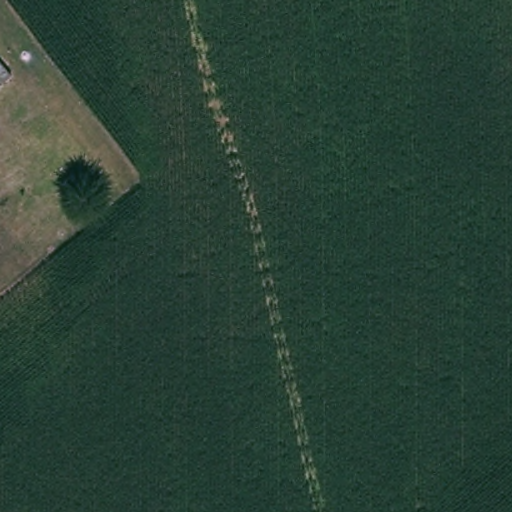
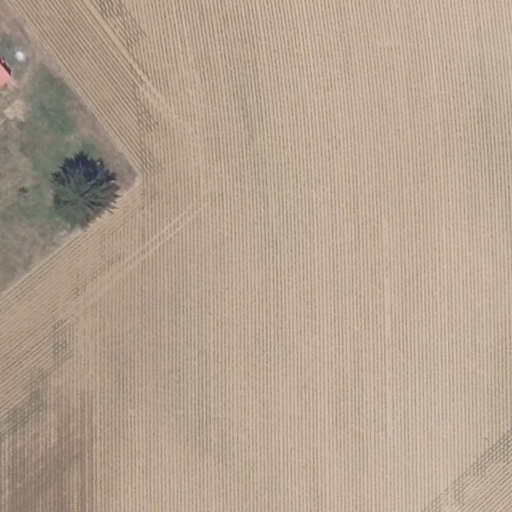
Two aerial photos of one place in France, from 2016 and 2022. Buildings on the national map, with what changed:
unchanged [(12,79),(0,89),(0,64),(12,79)]

